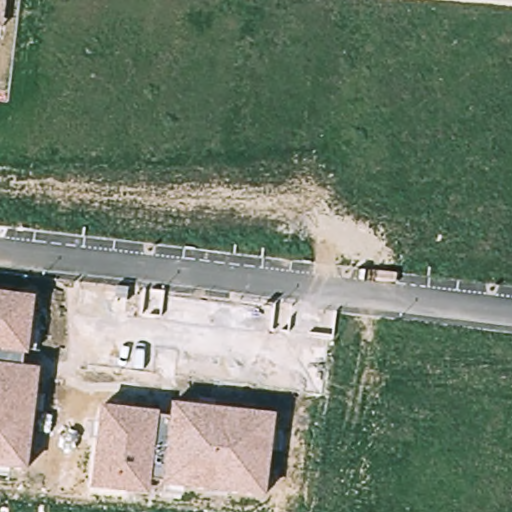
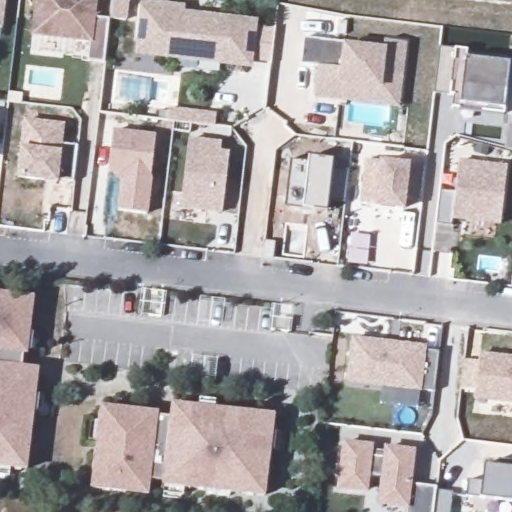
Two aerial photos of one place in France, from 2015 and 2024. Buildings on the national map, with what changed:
unchanged [(1,29),(0,28),(0,0),(5,0),(1,29)]
new [(35,0),(97,0),(95,17),(109,19),(104,63),(87,61),(89,42),(31,35),(35,0)]
new [(141,0),(185,5),(185,11),(257,19),(251,69),(134,55),(141,0)]
new [(314,98),(317,65),(300,65),(304,37),(343,42),(382,47),(383,40),(407,43),(400,107),(314,98)]
new [(439,45),(454,47),(465,47),(464,55),(509,60),(504,105),(502,114),(452,109),(454,92),(433,91),(439,45)]
new [(65,124),(63,145),(78,146),(74,183),(57,180),(57,184),(16,179),(19,146),(21,146),(24,120),(65,124)]
new [(156,135),(151,177),(148,214),(116,210),(121,175),(108,174),(113,130),(156,135)]
new [(221,142),(220,151),(229,152),(222,215),(180,209),(189,138),(221,142)]
new [(307,164),(308,156),(334,160),(332,170),(350,171),(347,204),(329,202),(328,214),(302,210),(284,208),(289,160),(307,164)]
new [(379,163),(379,160),(410,164),(409,167),(425,169),(421,202),(406,201),(404,211),(375,207),(360,205),(365,161),(379,163)]
new [(501,224),(453,219),(451,225),(437,224),(441,190),(456,191),(460,160),(507,165),(501,224)]
unchanged [(24,355),(22,366),(39,368),(26,472),(0,469),(0,292),(33,296),(27,355),(24,355)]
new [(427,346),(426,351),(440,353),(435,392),(420,391),(418,408),(381,405),(384,388),(346,384),(350,337),(427,346)]
new [(478,363),(480,353),(512,357),(512,403),(474,400),(475,391),(460,390),(464,361),(478,363)]
unchanged [(265,498),(161,486),(162,480),(150,479),(147,496),(90,488),(101,406),(160,413),(159,415),(169,416),(171,403),(275,415),(265,498)]
new [(406,512),(407,510),(377,506),(380,477),(371,476),(369,493),(337,490),(342,441),(373,445),(373,452),(383,453),(384,445),(415,450),(412,485),(437,487),(437,491),(453,493),(451,512),(406,512)]
new [(484,465),(497,466),(497,460),(512,461),(512,502),(480,499),(466,497),(468,481),(482,483),(484,465)]

